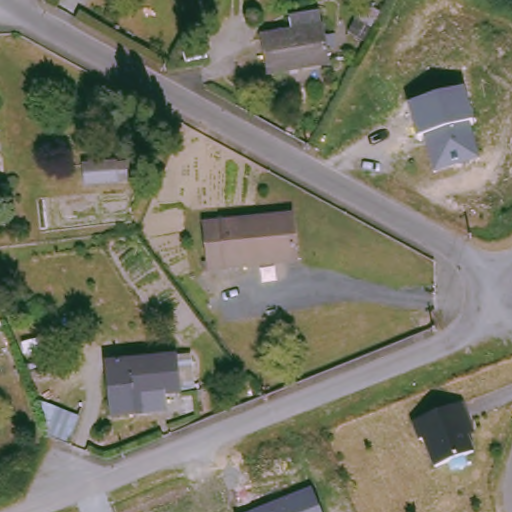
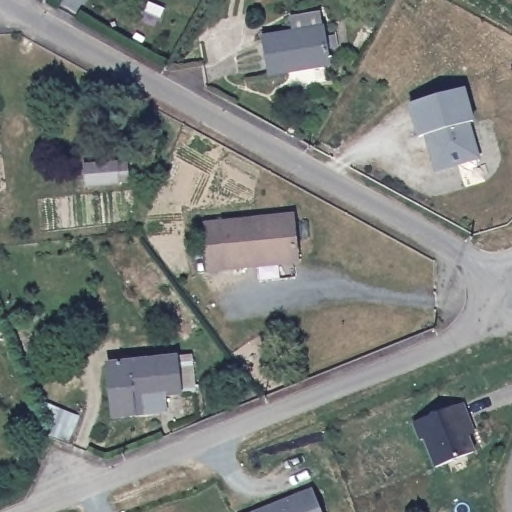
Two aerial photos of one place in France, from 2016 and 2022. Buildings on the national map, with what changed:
unchanged [(324,20),(329,61),(266,68),(261,27),(324,20)]
unchanged [(407,106),(464,89),(474,121),(468,124),(479,160),(432,174),(422,137),(417,139),(407,106)]
unchanged [(84,160),(116,155),(126,154),(129,175),(119,176),(87,180),(84,160)]
unchanged [(301,260),(214,270),(208,225),(294,212),(301,260)]
unchanged [(183,387),(138,396),(141,411),(118,415),(109,365),(178,352),(183,387)]
unchanged [(463,403),(469,420),(462,423),(474,452),(434,467),(416,422),(463,403)]
unchanged [(316,488),(324,512),(254,512),(316,488)]

